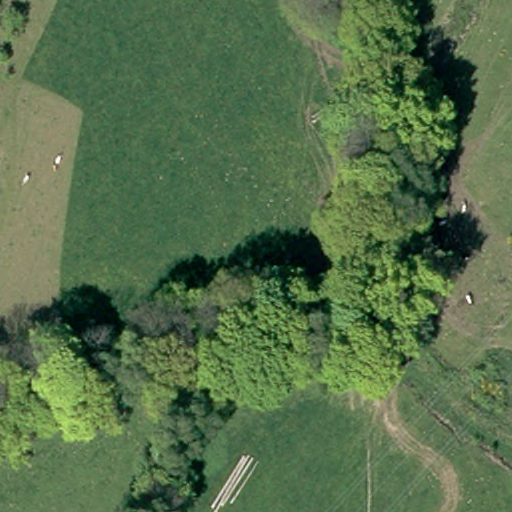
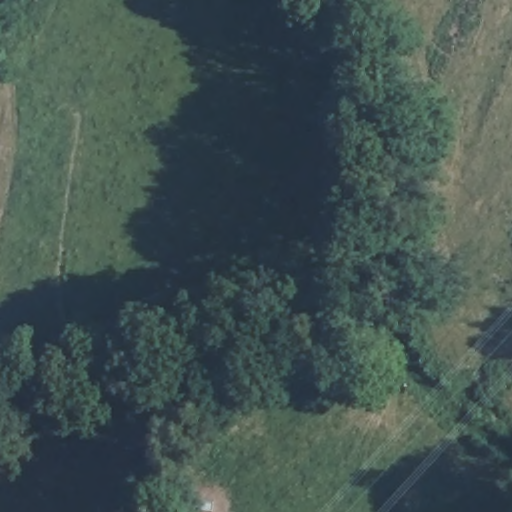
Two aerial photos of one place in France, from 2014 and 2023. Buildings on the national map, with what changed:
[]

